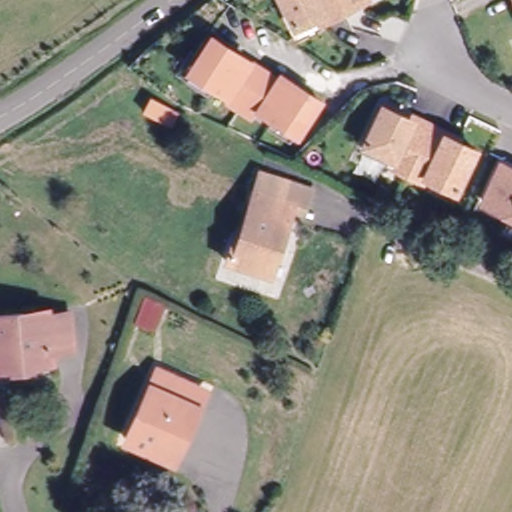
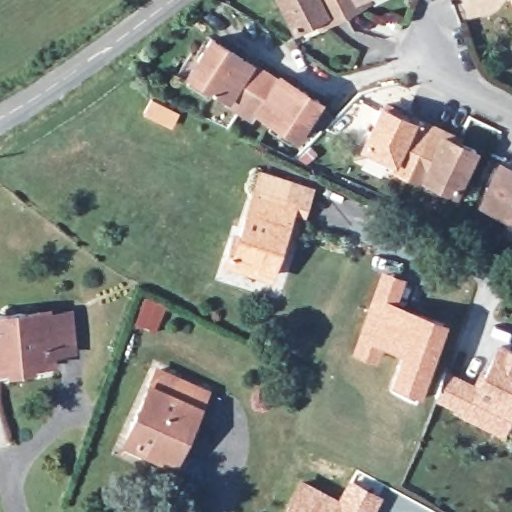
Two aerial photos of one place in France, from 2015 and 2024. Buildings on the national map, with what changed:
unchanged [(317,15),(294,25),(282,0),(340,0),(344,10),(327,18),(320,21),(317,15)]
unchanged [(362,1),(344,10),(340,0),(364,0),(362,1)]
unchanged [(272,117),(257,107),(252,115),(238,106),(224,97),(228,92),(212,82),(207,90),(185,76),(191,68),(189,66),(211,32),(268,70),(277,76),(279,71),(319,97),(295,132),(294,131),(288,139),(267,125),(272,117)]
unchanged [(406,175),(389,167),(392,162),(362,147),(381,107),(410,121),(413,116),(430,125),(406,175)]
unchanged [(459,140),(458,143),(474,151),(455,192),(425,177),(423,183),(406,175),(430,125),(448,134),(459,140)]
unchanged [(232,236),(238,238),(258,170),(287,179),(283,196),(294,199),(271,271),(226,259),(232,236)]
unchanged [(478,209),(497,171),(512,178),(512,225),(478,209)]
new [(381,268),(407,276),(398,300),(449,319),(421,391),(389,380),(399,350),(384,345),(378,360),(352,350),(381,268)]
unchanged [(50,363),(0,367),(0,318),(49,315),(50,363)]
new [(512,347),(512,415),(504,435),(460,416),(462,411),(434,399),(445,368),(477,382),(496,340),(512,347)]
unchanged [(129,427),(154,373),(200,396),(168,461),(141,447),(124,438),(129,427)]
new [(338,496),(351,476),(384,495),(375,512),(281,512),(300,476),(338,496)]

